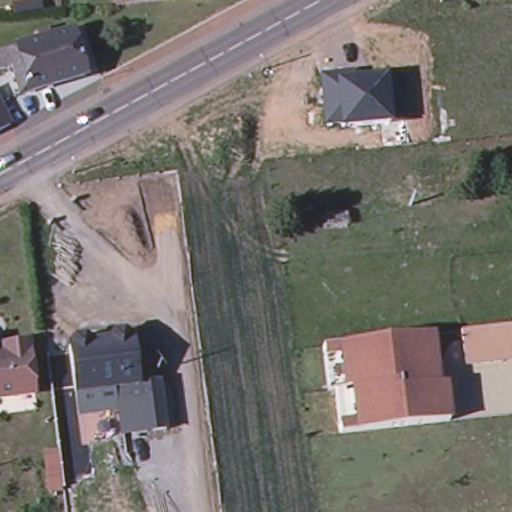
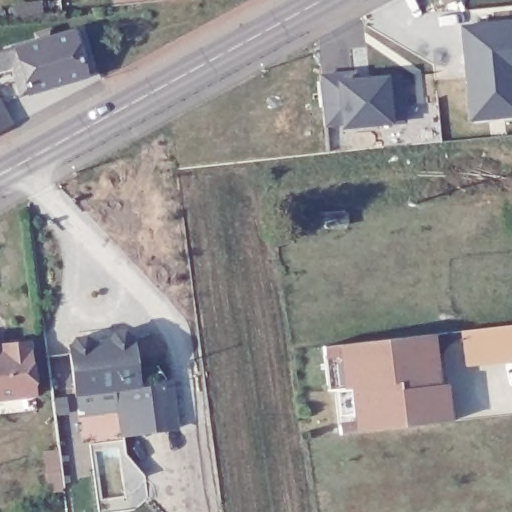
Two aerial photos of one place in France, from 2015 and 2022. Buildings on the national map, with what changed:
new [(470,122),(461,24),(512,19),(512,118),(470,122)]
unchanged [(89,74),(25,92),(17,65),(0,69),(0,50),(20,45),(21,46),(43,40),(41,32),(53,29),(55,36),(77,30),(89,74)]
unchanged [(362,72),(363,75),(390,74),(394,121),(325,127),(320,75),(362,72)]
unchanged [(0,128),(0,106),(9,124),(0,128)]
unchanged [(461,328),(512,322),(512,357),(465,362),(461,328)]
unchanged [(79,391),(73,343),(79,335),(89,335),(97,340),(97,343),(113,341),(112,338),(118,331),(128,330),(134,335),(136,336),(142,383),(166,380),(172,427),(147,430),(126,432),(121,386),(79,391)]
unchanged [(436,331),(442,382),(449,381),(449,382),(453,420),(362,430),(344,432),(341,393),(340,387),(333,388),(328,343),(436,331)]
unchanged [(20,390),(9,391),(4,346),(9,346),(9,343),(14,337),(28,335),(34,341),(39,381),(39,387),(20,390)]
unchanged [(4,346),(9,391),(2,392),(2,387),(0,387),(0,347),(4,346)]

